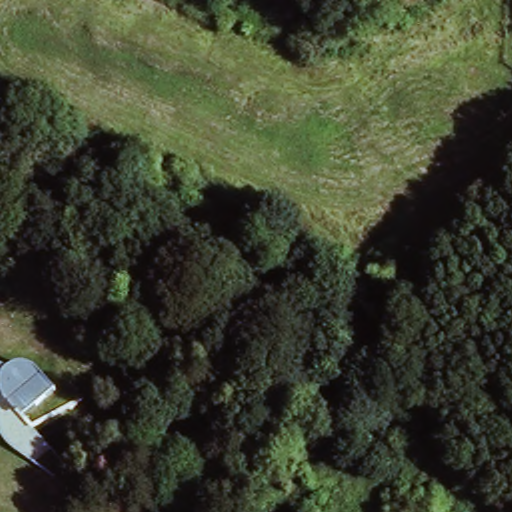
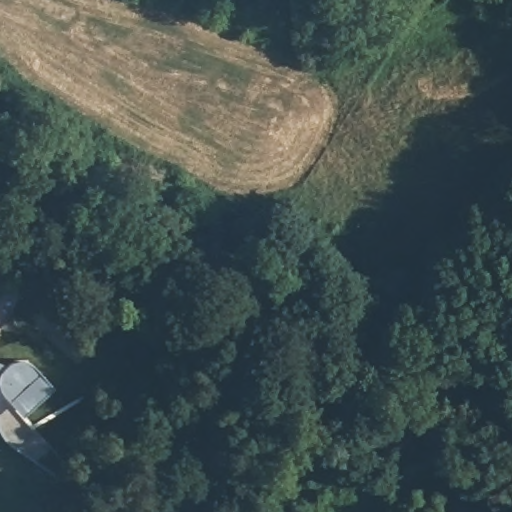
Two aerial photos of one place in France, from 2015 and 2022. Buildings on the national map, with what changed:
unchanged [(22,354),(38,355),(44,357),(70,385),(37,413),(97,470),(86,476),(16,435),(9,427),(5,416),(5,400),(0,400),(0,393),(8,393),(10,368),(0,364),(0,357),(13,361),(22,354)]

